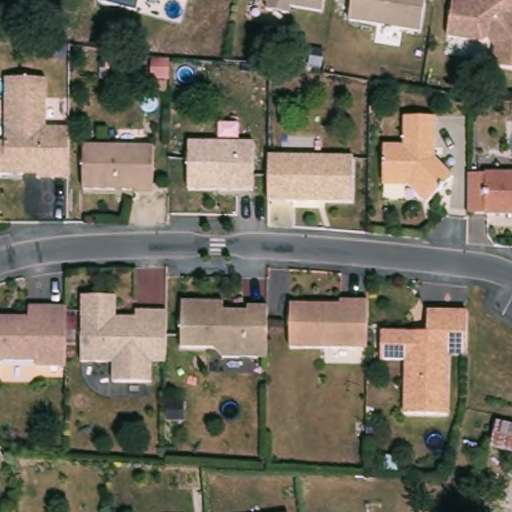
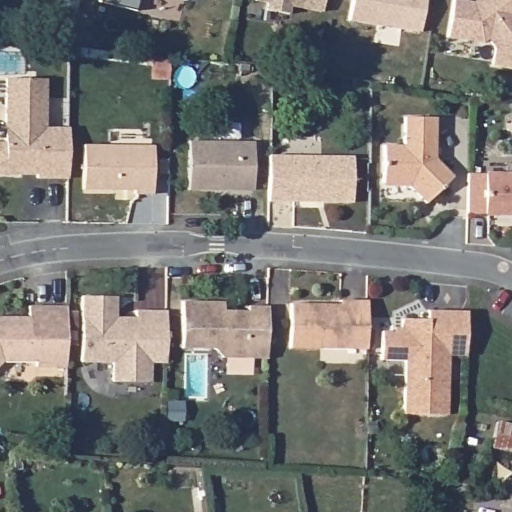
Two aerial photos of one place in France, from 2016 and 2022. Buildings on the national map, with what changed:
unchanged [(290,9),(290,16),(268,12),(268,4),(254,3),(255,0),(324,0),(322,13),(290,9)]
unchanged [(349,23),(352,0),(423,0),(419,32),(349,23)]
unchanged [(479,0),(512,0),(512,74),(491,71),(493,50),(486,43),(483,44),(447,39),(450,0),(474,4),(479,0)]
unchanged [(0,169),(0,137),(9,138),(10,74),(50,74),(50,123),(73,124),(73,128),(72,174),(41,173),(41,169),(25,169),(0,169)]
unchanged [(410,145),(410,118),(441,118),(441,148),(438,148),(438,156),(459,178),(432,204),(429,199),(413,184),(389,184),(389,145),(410,145)]
unchanged [(88,184),(89,140),(118,140),(143,141),(158,141),(158,189),(140,189),(140,185),(132,185),(88,184)]
unchanged [(193,142),(219,143),(244,143),(258,143),(258,191),(193,190),(193,142)]
unchanged [(274,202),(274,174),(274,156),(287,156),(327,157),(359,158),(358,203),(330,202),(322,202),(274,202)]
unchanged [(472,174),(512,174),(512,213),(472,213),(472,174)]
unchanged [(156,364),(155,383),(117,383),(118,363),(86,363),(87,297),(121,298),(120,319),(130,319),(140,319),(141,312),(171,312),(171,320),(171,354),(171,364),(156,364)]
unchanged [(347,301),(347,297),(355,297),(374,298),(374,346),(358,345),(328,344),(296,344),(297,300),(347,301)]
unchanged [(253,304),(273,304),(273,356),(259,356),(228,355),(220,346),(216,346),(187,346),(187,299),(229,300),(229,309),(239,309),(253,309),(253,304)]
unchanged [(33,307),(70,307),(70,368),(40,367),(40,362),(6,362),(0,368),(0,318),(6,318),(14,318),(33,318),(33,307)]
unchanged [(411,329),(430,329),(431,308),(470,308),(470,344),(470,352),(452,352),(451,412),(408,412),(409,376),(409,358),(384,357),(385,329),(411,329)]
unchanged [(512,455),(489,451),(495,419),(512,423),(512,455)]
unchanged [(294,509),(294,512),(277,512),(294,509)]
unchanged [(442,509),(455,512),(442,512),(442,509)]

